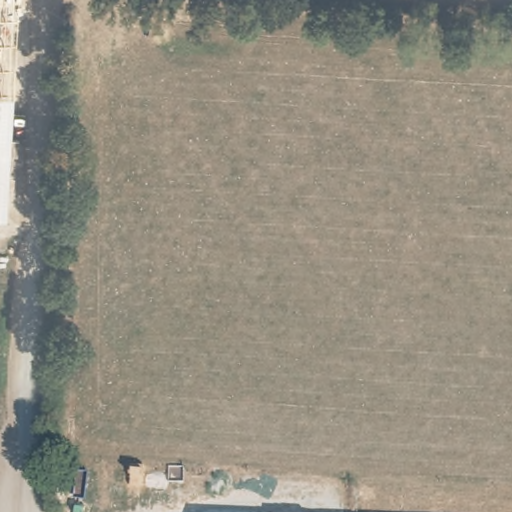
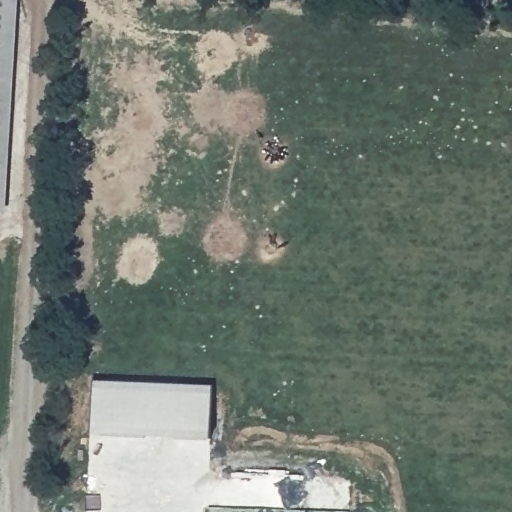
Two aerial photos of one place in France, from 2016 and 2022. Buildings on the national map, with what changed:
unchanged [(5,214),(0,214),(0,0),(18,0),(5,214)]
new [(209,442),(89,437),(91,381),(211,386),(209,442)]

